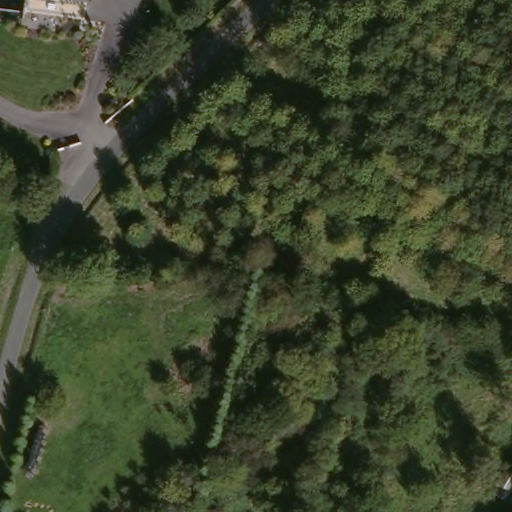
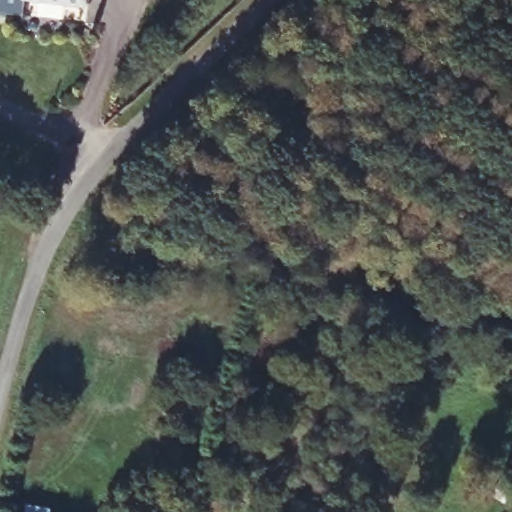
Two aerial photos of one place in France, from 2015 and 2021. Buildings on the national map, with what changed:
unchanged [(25,0),(86,0),(85,12),(37,6),(25,5),(25,0)]

